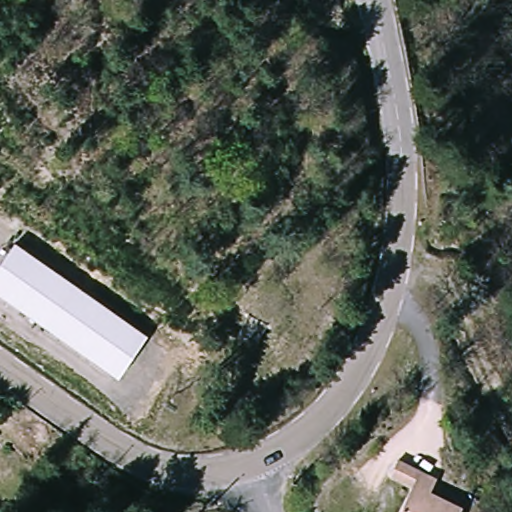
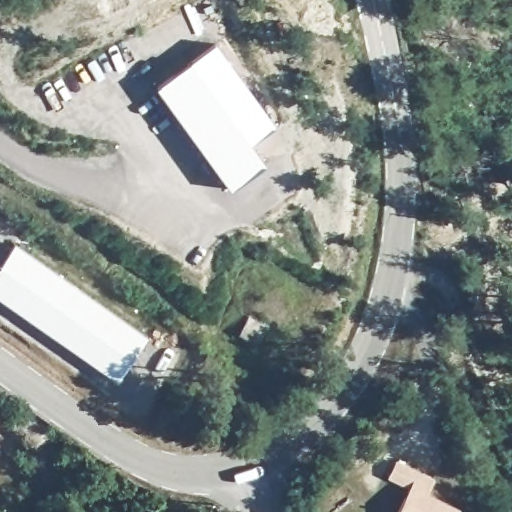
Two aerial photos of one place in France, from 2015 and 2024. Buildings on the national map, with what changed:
new [(231,190),(156,87),(192,62),(266,164),(231,190)]
unchanged [(122,377),(0,300),(0,267),(12,248),(148,334),(122,377)]
unchanged [(444,482),(440,495),(470,507),(469,512),(414,512),(420,492),(399,482),(404,468),(444,482)]

